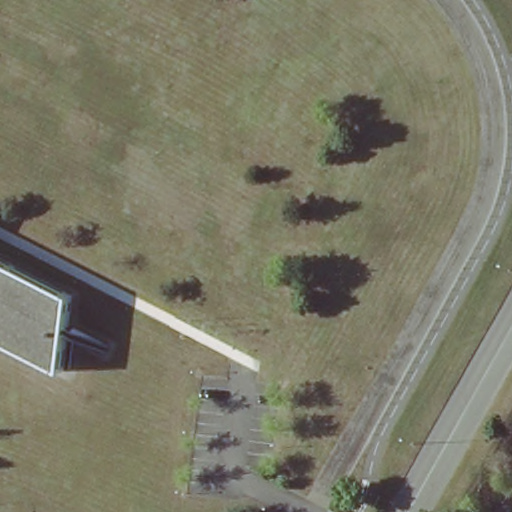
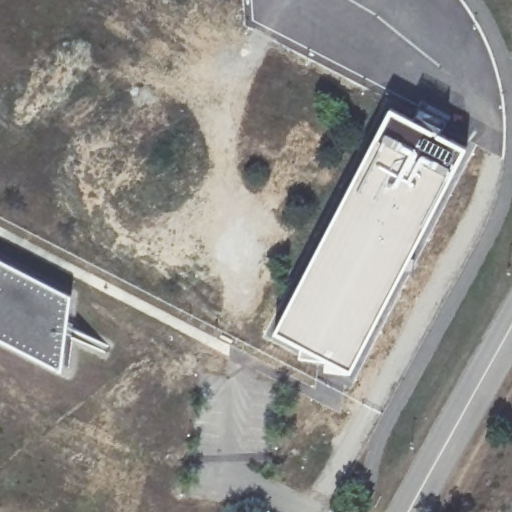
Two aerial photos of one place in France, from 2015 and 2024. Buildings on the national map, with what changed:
new [(390,106),(468,146),(370,334),(349,372),(329,363),(324,361),(299,358),(299,346),(270,334),(390,106)]
unchanged [(58,376),(0,347),(0,267),(67,301),(58,376)]

